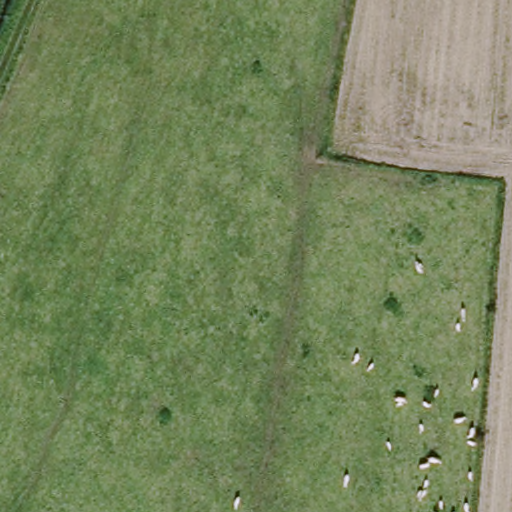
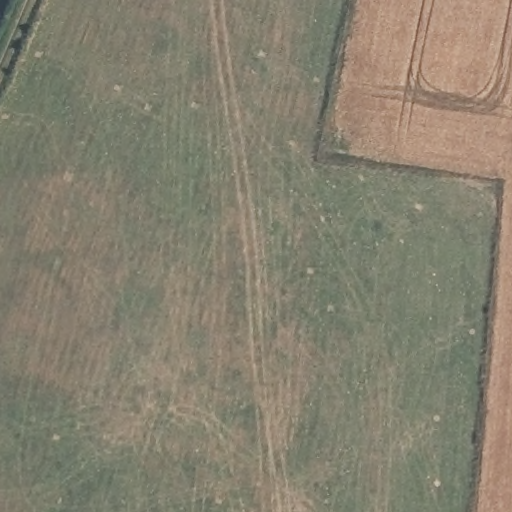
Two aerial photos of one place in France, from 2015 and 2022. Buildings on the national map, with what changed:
[]

